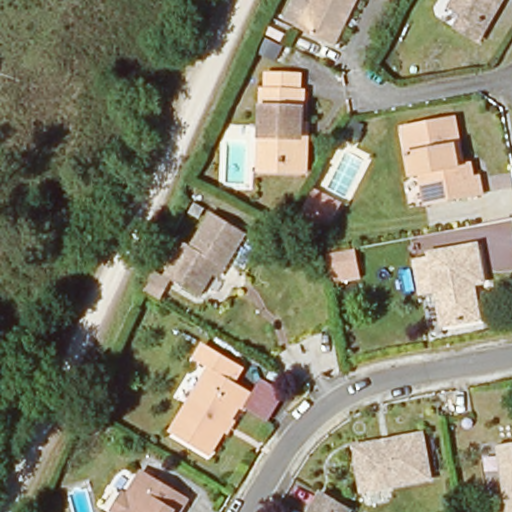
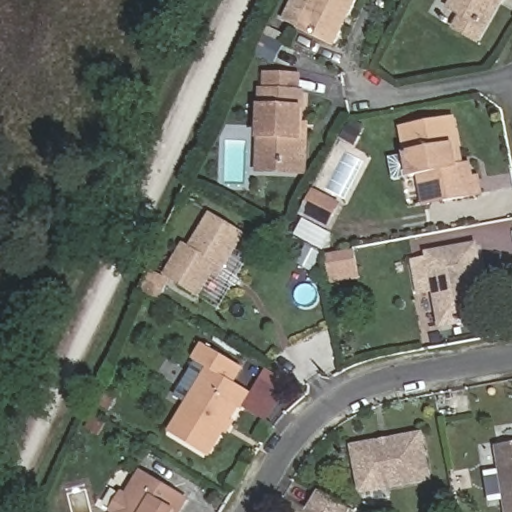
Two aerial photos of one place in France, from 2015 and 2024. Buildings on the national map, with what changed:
unchanged [(282,24),(294,0),(313,0),(359,0),(335,50),(298,31),(282,24)]
unchanged [(449,16),(458,0),(499,0),(480,34),(449,16)]
unchanged [(507,0),(505,4),(499,0),(507,0)]
unchanged [(265,110),(265,94),(299,95),(299,111),(303,111),(300,179),(258,178),(261,110),(265,110)]
unchanged [(454,123),(460,153),(455,154),(457,169),(469,166),(472,183),(478,182),(481,198),(424,208),(419,179),(410,180),(401,133),(454,123)]
unchanged [(340,202),(327,226),(303,214),(315,189),(340,202)]
unchanged [(229,269),(222,266),(205,296),(167,274),(185,243),(190,247),(211,213),(250,234),(229,269)]
unchanged [(362,278),(334,285),(327,257),(355,249),(362,278)]
unchanged [(427,258),(475,250),(482,287),(473,289),(479,323),(441,331),(435,294),(419,297),(413,266),(428,263),(427,258)]
unchanged [(152,273),(170,283),(162,296),(145,286),(152,273)]
unchanged [(248,391),(208,456),(170,433),(209,369),(195,360),(204,344),(241,367),(233,382),(248,391)]
unchanged [(252,396),(262,378),(277,389),(274,395),(281,401),(265,424),(245,407),(252,396)]
unchanged [(352,447),(421,434),(428,479),(360,492),(352,447)]
unchanged [(497,445),(512,443),(512,512),(507,512),(497,445)]
unchanged [(179,512),(114,512),(111,511),(122,493),(126,496),(140,472),(186,500),(179,512)]
unchanged [(308,511),(320,493),(350,510),(348,512),(310,512),(308,511)]

